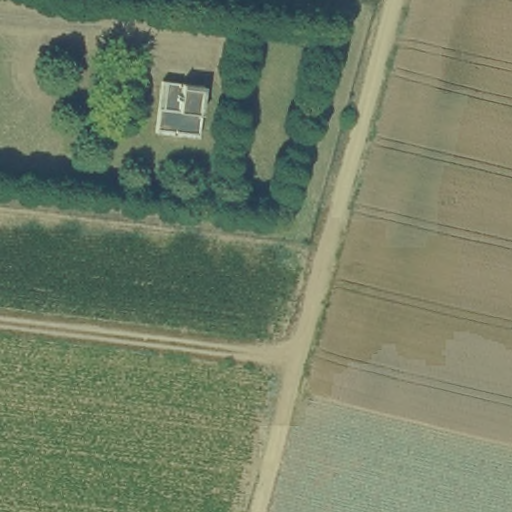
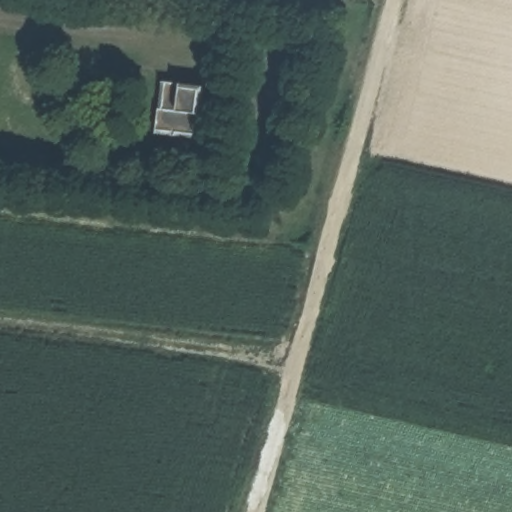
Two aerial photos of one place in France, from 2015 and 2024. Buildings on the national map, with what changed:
unchanged [(207,86),(200,138),(157,135),(164,82),(207,86)]

